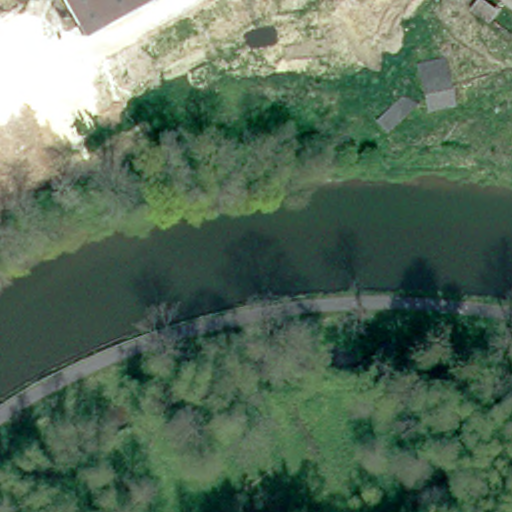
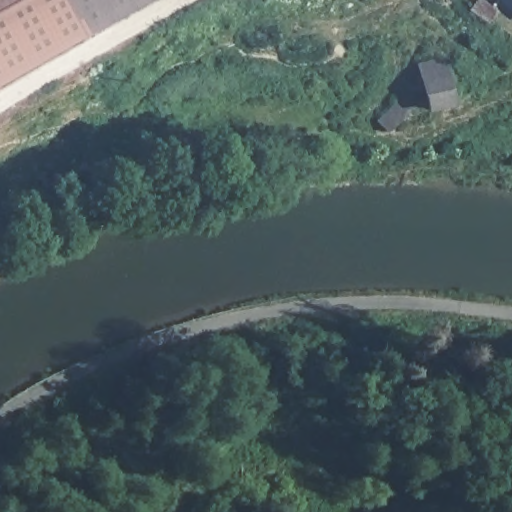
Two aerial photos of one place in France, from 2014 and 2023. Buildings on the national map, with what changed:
new [(0,0),(65,0),(85,35),(0,84),(0,0)]
unchanged [(86,36),(65,0),(149,0),(86,36)]
unchanged [(419,64),(439,59),(468,51),(473,72),(444,79),(449,104),(430,108),(419,64)]

